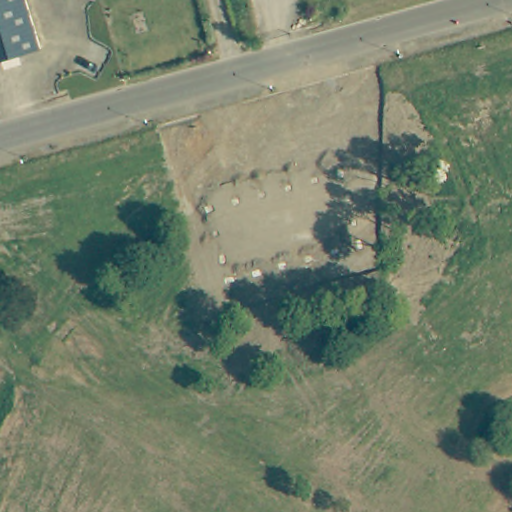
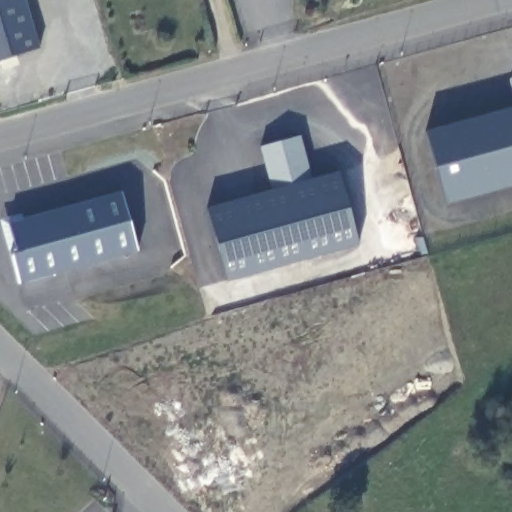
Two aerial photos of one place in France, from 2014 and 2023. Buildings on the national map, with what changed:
unchanged [(0,60),(0,0),(25,0),(41,48),(0,60)]
new [(445,203),(426,131),(512,107),(512,185),(445,203)]
new [(314,178),(338,171),(358,245),(227,281),(206,208),(273,189),(260,147),(301,136),(314,178)]
unchanged [(19,284),(0,223),(0,219),(21,213),(25,218),(121,191),(138,250),(19,284)]

